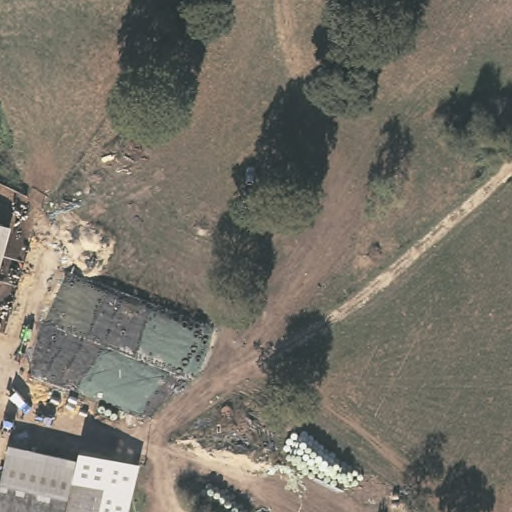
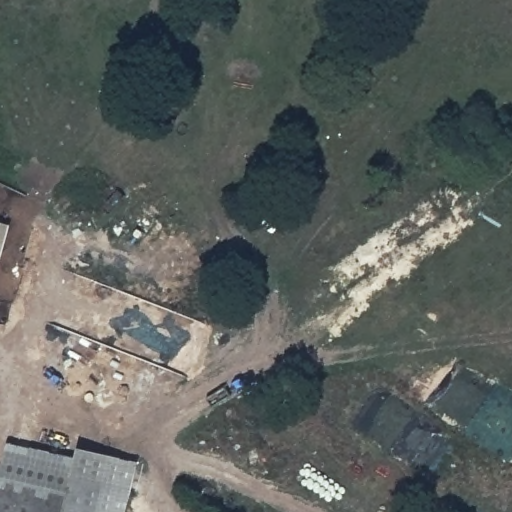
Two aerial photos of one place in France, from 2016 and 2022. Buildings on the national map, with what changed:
unchanged [(65,471),(125,487),(119,512),(61,512),(66,492),(58,489),(65,471)]
unchanged [(58,489),(66,492),(61,512),(0,512),(0,504),(9,476),(58,489)]

